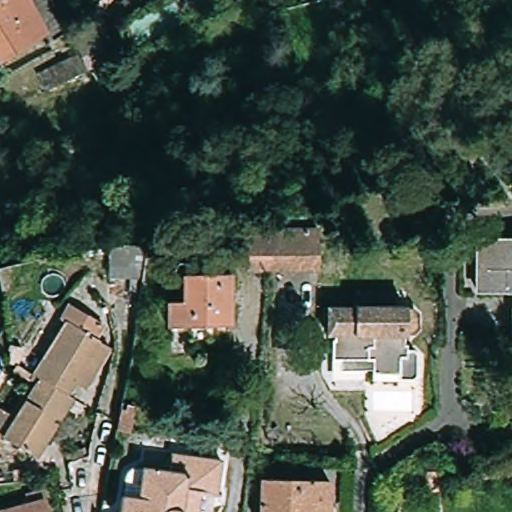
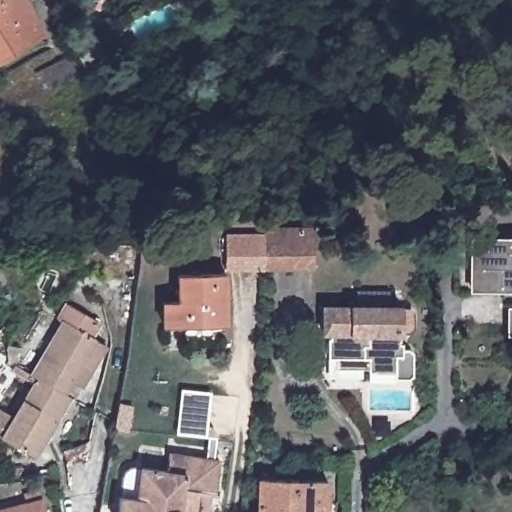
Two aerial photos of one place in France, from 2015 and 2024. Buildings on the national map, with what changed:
unchanged [(4,63),(2,60),(0,61),(0,0),(27,0),(48,35),(4,63)]
unchanged [(78,56),(76,51),(78,50),(96,42),(105,62),(88,69),(85,71),(44,92),(36,76),(47,71),(78,56)]
unchanged [(241,234),(262,234),(262,229),(312,229),(313,267),(262,268),(241,268),(241,234)]
unchanged [(475,241),(512,242),(512,293),(475,293),(475,241)]
unchanged [(140,276),(107,276),(108,243),(140,243),(142,254),(140,276)]
unchanged [(163,320),(163,296),(180,296),(179,270),(225,269),(226,319),(163,320)]
unchanged [(366,372),(366,370),(337,370),(337,359),(330,359),(330,334),(322,334),(322,307),(356,307),(356,293),(390,293),(390,307),(397,307),(397,311),(402,311),(410,318),(410,327),(402,332),(400,332),(400,345),(402,345),(402,350),(408,350),(412,354),(412,376),(408,379),(394,380),(366,380),(366,372)]
unchanged [(90,383),(78,376),(70,390),(54,380),(43,374),(36,369),(68,315),(62,312),(71,297),(106,318),(97,333),(102,336),(113,342),(90,383)]
unchanged [(70,390),(75,393),(41,451),(0,427),(0,403),(1,401),(20,413),(43,374),(54,380),(70,390)]
new [(175,435),(180,388),(215,391),(210,439),(175,435)]
unchanged [(133,405),(129,430),(115,428),(120,407),(124,408),(125,403),(133,405)]
unchanged [(137,494),(141,464),(166,468),(169,450),(218,457),(213,493),(199,491),(196,512),(117,512),(120,492),(137,494)]
unchanged [(506,469),(487,476),(485,466),(503,460),(506,469)]
unchanged [(328,477),(328,494),(336,494),(336,512),(260,512),(260,476),(328,477)]
unchanged [(35,501),(32,493),(50,488),(56,512),(0,512),(0,511),(35,501)]

